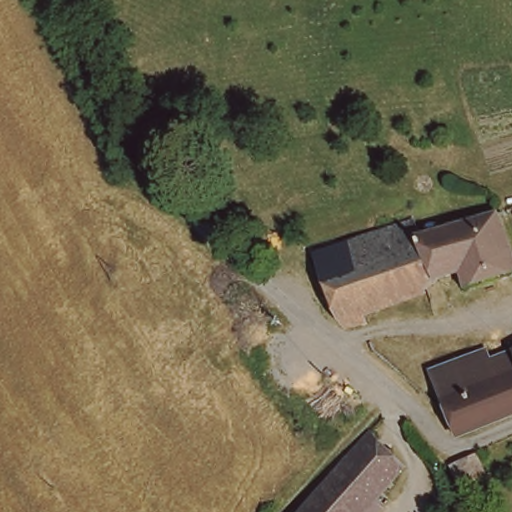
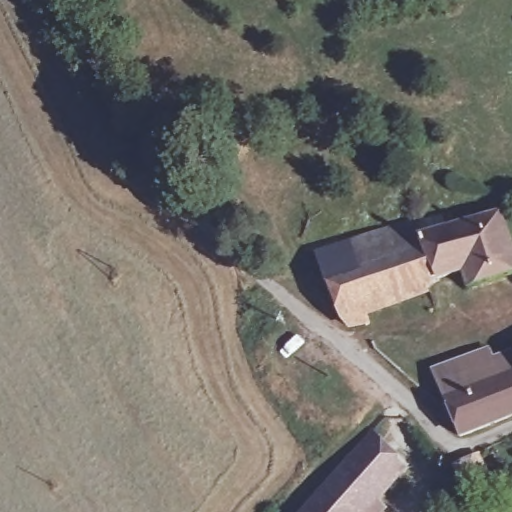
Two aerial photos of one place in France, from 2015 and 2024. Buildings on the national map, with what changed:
unchanged [(512,274),(468,289),(463,272),(438,280),(429,288),(365,312),(369,323),(349,327),(341,320),(316,254),(417,220),(421,235),(500,212),(512,244),(512,274)]
unchanged [(433,372),(489,350),(494,360),(501,358),(512,354),(512,416),(460,437),(433,372)]
unchanged [(412,470),(382,505),(391,512),(314,512),(379,437),(412,470)]
unchanged [(494,485),(472,496),(460,471),(460,470),(483,460),(494,485)]

